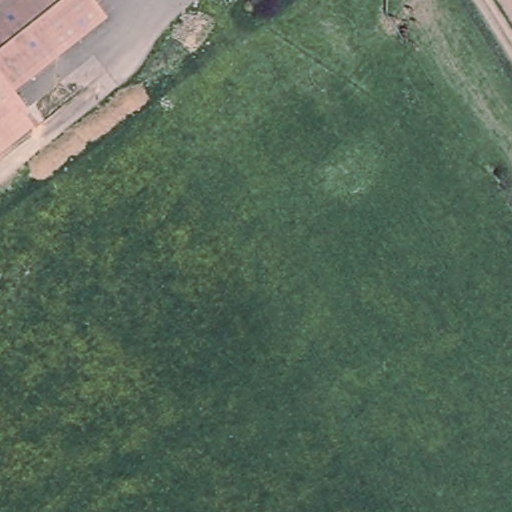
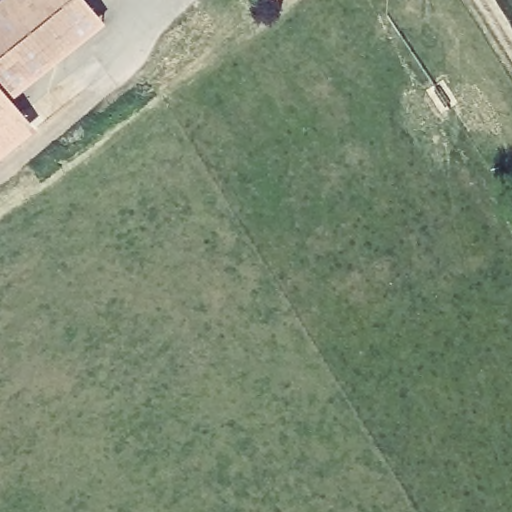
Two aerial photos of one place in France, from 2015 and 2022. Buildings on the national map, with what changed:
unchanged [(12,93),(0,78),(0,0),(90,0),(105,18),(12,93)]
unchanged [(0,130),(0,78),(12,93),(26,110),(0,130)]
unchanged [(0,154),(0,130),(26,110),(37,125),(0,154)]

